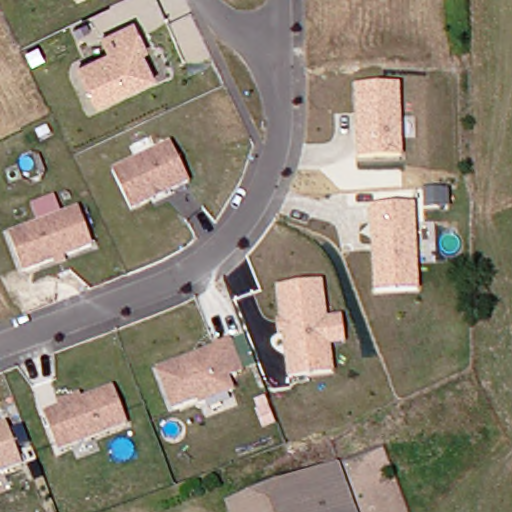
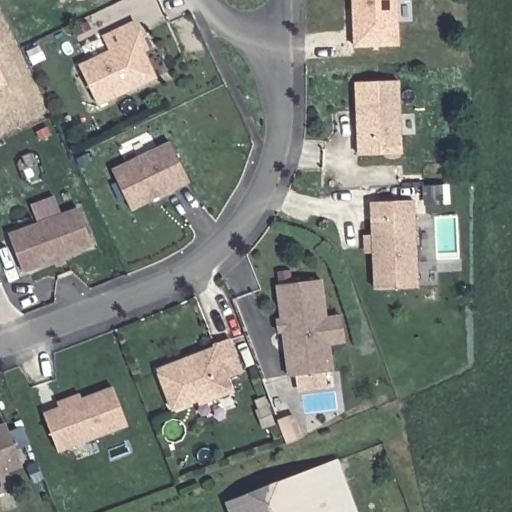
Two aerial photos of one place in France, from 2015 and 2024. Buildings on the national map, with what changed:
new [(399,46),(353,47),(351,0),(398,0),(399,46)]
unchanged [(77,66),(108,51),(101,37),(132,22),(139,37),(145,50),(140,51),(152,77),(96,105),(77,66)]
new [(0,71),(6,84),(0,86),(0,71)]
unchanged [(399,133),(400,151),(357,153),(355,82),(397,80),(398,113),(413,112),(414,132),(399,133)]
unchanged [(167,142),(186,180),(128,209),(109,170),(167,142)]
unchanged [(376,290),(370,205),(412,202),(413,220),(428,219),(430,239),(415,240),(418,287),(376,290)]
unchanged [(32,212),(50,205),(54,217),(76,209),(90,245),(21,271),(7,235),(36,224),(32,212)]
unchanged [(328,342),(330,368),(286,372),(282,327),(277,328),(276,316),(281,316),(278,282),(321,277),(325,313),(340,312),(343,341),(328,342)]
unchanged [(185,358),(187,362),(214,353),(212,346),(227,341),(238,373),(224,378),(229,392),(195,405),(194,400),(168,409),(155,370),(185,358)]
unchanged [(113,390),(127,427),(58,453),(44,416),(113,390)]
unchanged [(0,429),(5,427),(19,468),(0,475),(0,429)]
unchanged [(329,462),(348,512),(222,512),(218,503),(329,462)]

